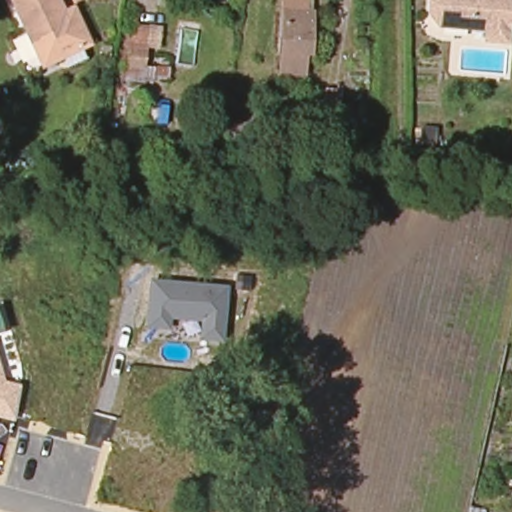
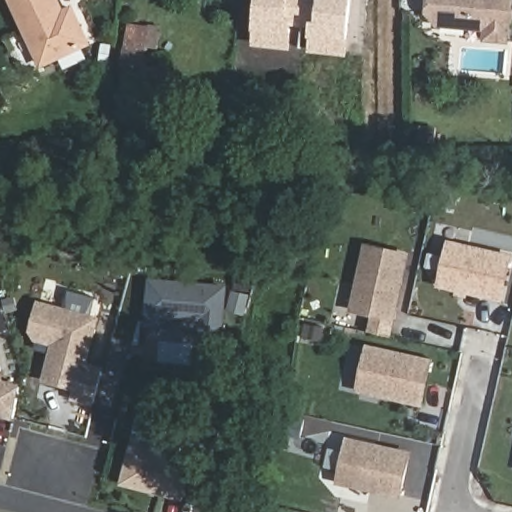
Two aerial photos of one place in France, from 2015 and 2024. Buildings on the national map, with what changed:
unchanged [(74,7),(93,44),(48,66),(14,0),(61,0),(66,11),(74,7)]
new [(347,56),(309,51),(310,39),(310,28),(294,25),(293,35),(291,50),(253,45),(254,31),(258,0),(354,0),(350,40),(347,56)]
unchanged [(432,22),(422,9),(423,0),(504,0),(503,5),(506,9),(505,19),(502,21),(500,39),(479,37),(480,26),(432,22)]
demolished [(302,13),(298,72),(276,70),(280,10),(283,10),(302,13)]
unchanged [(130,23),(161,28),(159,49),(150,49),(147,64),(169,68),(167,85),(135,83),(134,95),(120,97),(130,23)]
demolished [(334,91),(328,126),(314,124),(320,88),(334,91)]
new [(436,287),(448,240),(512,254),(512,261),(503,303),(436,287)]
new [(410,254),(394,323),(349,312),(364,243),(410,254)]
unchanged [(223,342),(198,339),(200,322),(170,319),(169,329),(144,328),(149,278),(228,284),(223,342)]
new [(40,382),(49,346),(34,342),(29,332),(37,300),(99,317),(80,393),(40,382)]
new [(355,391),(366,344),(434,359),(422,408),(355,391)]
unchanged [(21,384),(13,421),(0,418),(0,367),(3,380),(21,384)]
new [(120,486),(130,443),(152,448),(158,423),(201,434),(184,501),(120,486)]
new [(336,484),(347,437),(412,451),(401,499),(336,484)]

